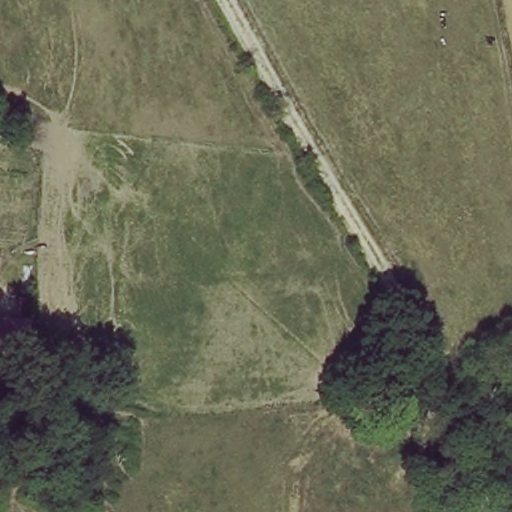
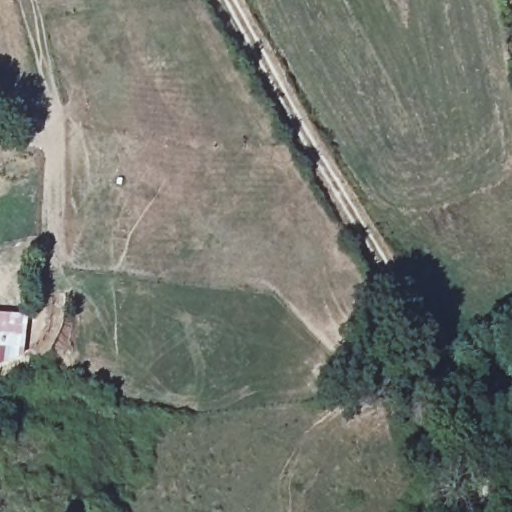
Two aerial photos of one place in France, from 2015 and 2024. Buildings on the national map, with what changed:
new [(4,365),(0,365),(0,316),(27,319),(26,358),(4,365)]

